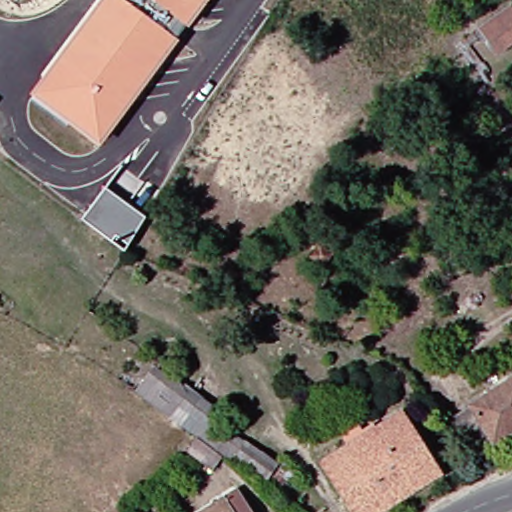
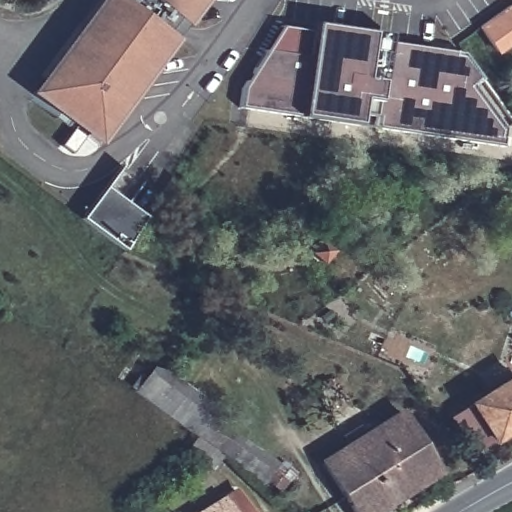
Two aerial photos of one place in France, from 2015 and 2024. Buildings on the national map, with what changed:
unchanged [(29,93),(100,0),(209,0),(101,147),(29,93)]
unchanged [(512,37),(491,51),(474,28),(503,6),(512,19),(512,37)]
new [(485,89),(471,99),(505,147),(227,104),(231,85),(259,50),(305,56),(308,32),(458,53),(485,89)]
new [(146,216),(124,253),(82,219),(106,187),(146,216)]
unchanged [(128,389),(151,366),(157,373),(162,366),(200,395),(195,398),(216,414),(195,435),(128,389)]
unchanged [(511,372),(512,374),(512,423),(471,448),(447,411),(511,372)]
unchanged [(393,415),(431,476),(372,512),(348,512),(316,462),(393,415)]
demolished [(214,455),(202,469),(177,448),(187,436),(205,448),(214,432),(221,438),(231,423),(239,430),(232,441),(266,464),(254,483),(214,455)]
unchanged [(231,491),(244,512),(198,512),(231,491)]

